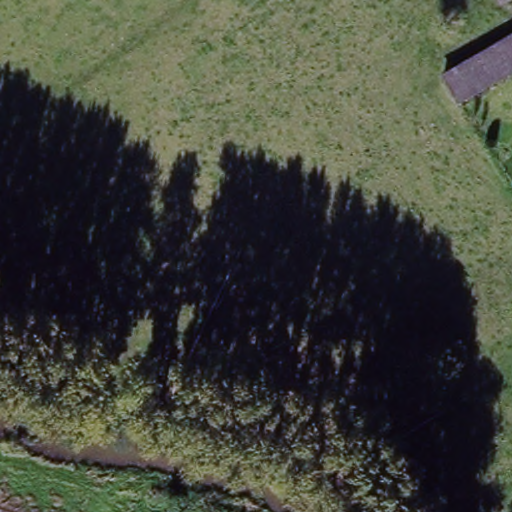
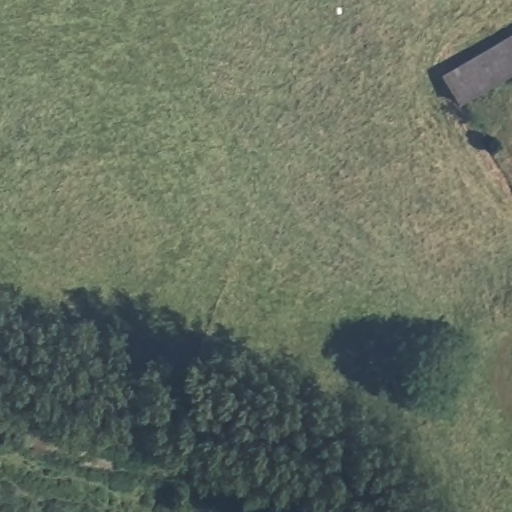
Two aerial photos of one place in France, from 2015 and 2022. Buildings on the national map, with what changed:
unchanged [(435,76),(512,32),(512,76),(461,106),(435,76)]

